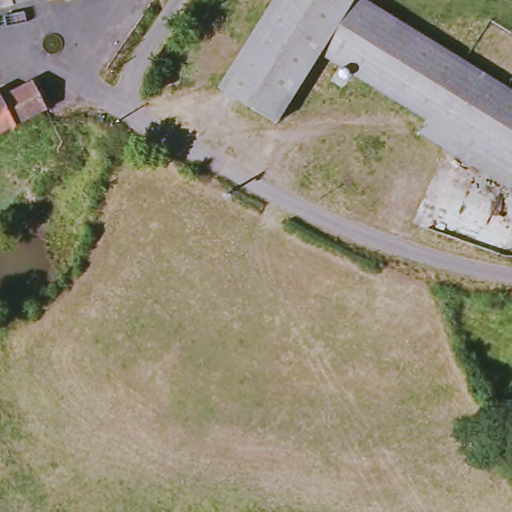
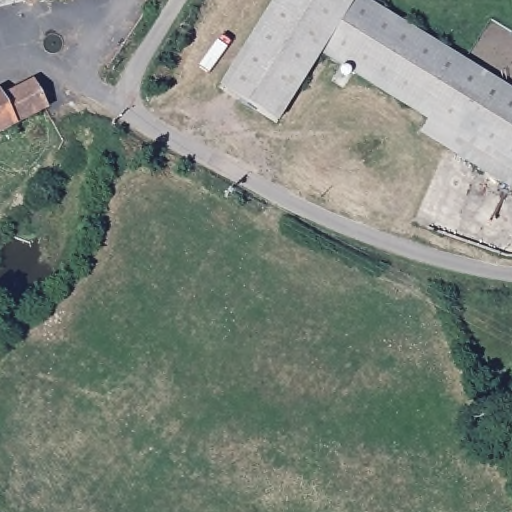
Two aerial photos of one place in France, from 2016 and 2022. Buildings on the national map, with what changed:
unchanged [(41,0),(0,11),(0,0),(41,0)]
unchanged [(276,0),(365,0),(512,91),(512,185),(425,130),(433,119),(323,55),(278,124),(222,89),(276,0)]
unchanged [(1,95),(2,99),(34,83),(48,111),(0,135),(0,95),(1,95)]

